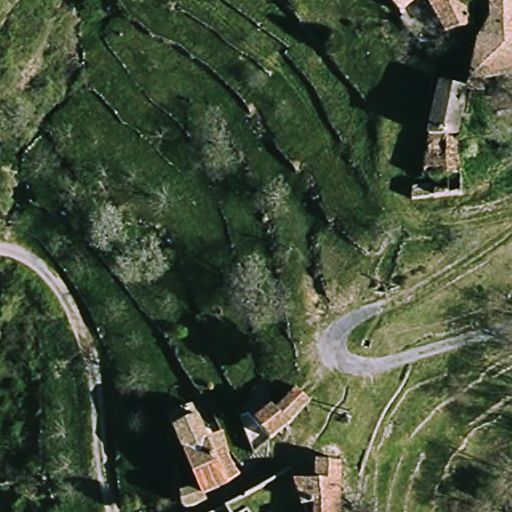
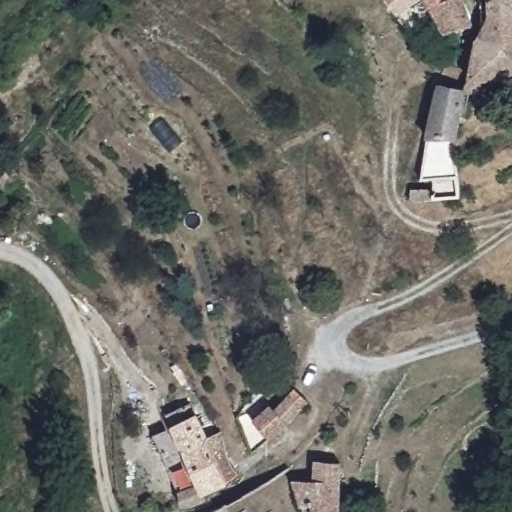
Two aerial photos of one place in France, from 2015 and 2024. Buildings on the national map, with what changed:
unchanged [(387,0),(414,0),(398,15),(387,0)]
unchanged [(462,15),(449,25),(428,0),(461,0),(467,10),(462,15)]
unchanged [(472,37),(486,30),(487,0),(512,0),(512,83),(466,82),(472,37)]
unchanged [(438,83),(459,84),(461,137),(428,140),(438,83)]
unchanged [(413,204),(419,184),(424,165),(428,140),(461,137),(463,180),(464,197),(413,204)]
unchanged [(291,383),(309,395),(288,428),(267,445),(251,425),(291,383)]
unchanged [(189,480),(165,416),(192,405),(225,485),(219,491),(172,508),(167,486),(189,480)]
unchanged [(314,507),(297,507),(290,481),(310,480),(310,459),(339,460),(337,508),(314,507)]
unchanged [(337,512),(313,512),(314,507),(337,508),(337,512)]

